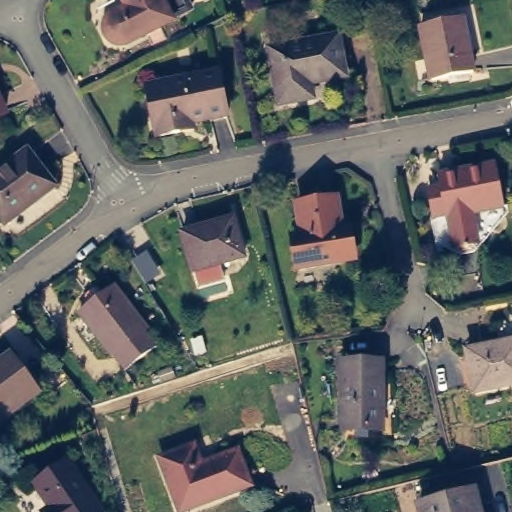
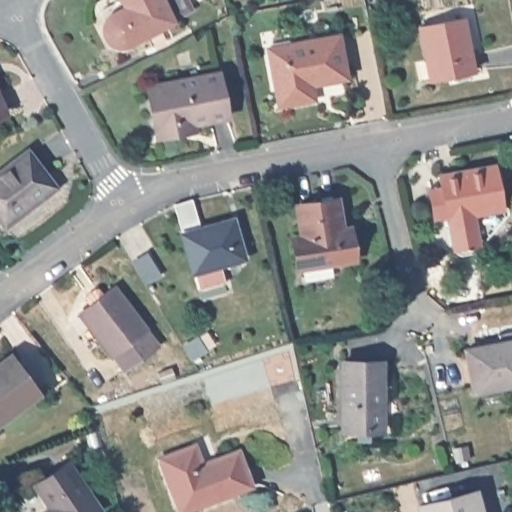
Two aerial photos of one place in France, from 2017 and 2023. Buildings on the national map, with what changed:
unchanged [(190,16),(125,49),(118,50),(113,50),(109,47),(105,42),(102,37),(102,34),(103,28),(105,24),(107,20),(112,17),(122,12),(117,0),(182,0),(190,16)]
unchanged [(470,6),(480,60),(439,67),(428,14),(470,6)]
unchanged [(296,97),(271,102),(260,44),(331,32),(338,76),(302,82),(304,96),(296,97)]
unchanged [(180,127),(157,130),(149,88),(148,81),(168,77),(220,69),(227,112),(192,118),(193,125),(180,127)]
unchanged [(26,141),(51,174),(3,210),(0,206),(0,160),(26,141)]
unchanged [(451,216),(440,217),(435,194),(446,192),(444,177),(500,167),(508,207),(451,217),(451,216)]
unchanged [(336,200),(341,228),(350,227),(354,258),(297,266),(293,236),(301,235),(298,205),(336,200)]
unchanged [(229,214),(240,252),(218,258),(221,271),(197,277),(194,267),(192,267),(180,229),(229,214)]
unchanged [(111,282),(144,326),(142,327),(154,342),(123,365),(112,351),(111,352),(78,306),(111,282)]
unchanged [(512,376),(470,383),(463,342),(512,334),(512,376)]
unchanged [(15,353),(42,391),(3,418),(0,414),(0,364),(15,353)]
unchanged [(384,364),(383,432),(345,431),(345,364),(384,364)]
unchanged [(200,449),(206,467),(243,453),(255,485),(209,502),(207,497),(185,505),(167,461),(200,449)]
unchanged [(93,510),(90,512),(49,512),(30,483),(62,462),(93,510)]
unchanged [(478,512),(418,512),(414,496),(471,482),(478,512)]

